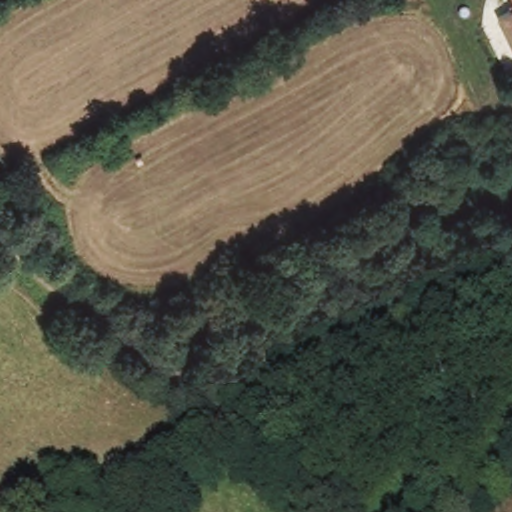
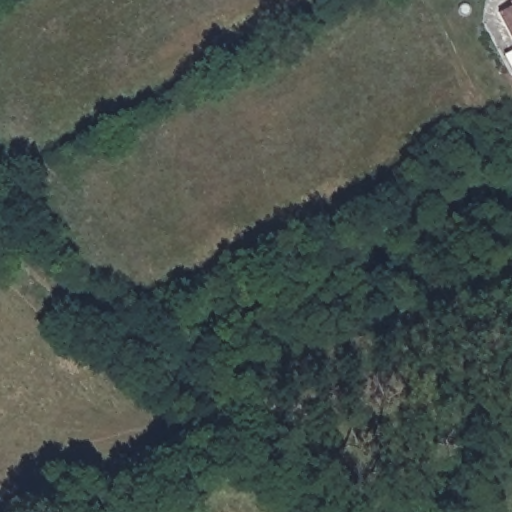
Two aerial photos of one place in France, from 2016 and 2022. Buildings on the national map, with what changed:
unchanged [(512,41),(497,13),(512,5),(512,41)]

